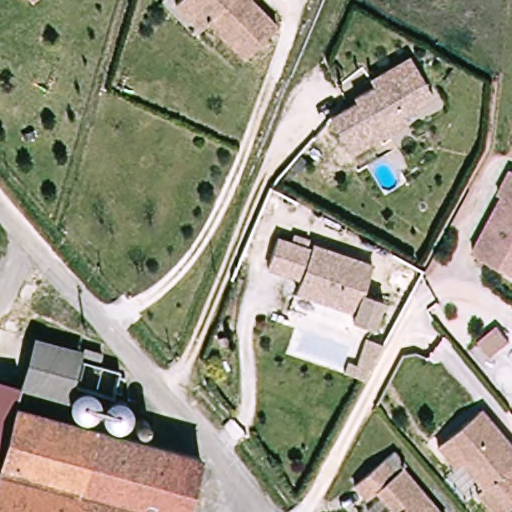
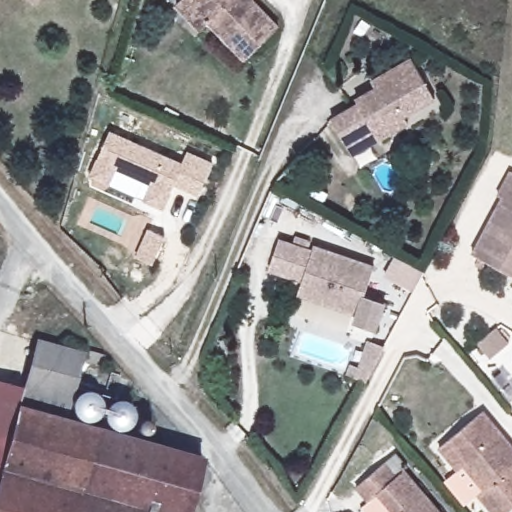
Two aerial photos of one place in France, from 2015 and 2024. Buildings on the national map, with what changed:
unchanged [(31,0),(36,0),(33,2),(31,0)]
unchanged [(244,60),(208,21),(200,29),(176,4),(180,0),(251,0),(277,28),(244,60)]
unchanged [(434,100),(403,117),(407,124),(351,156),(331,120),(358,105),(355,100),(374,89),(370,82),(379,77),(409,59),(434,100)]
new [(176,186),(164,210),(88,176),(110,130),(183,162),(188,150),(214,163),(198,195),(176,186)]
unchanged [(473,254),(503,197),(499,195),(511,171),(512,172),(512,275),(473,254)]
unchanged [(279,244),(292,249),(294,240),(314,247),(314,250),(374,270),(365,298),(384,305),(376,332),(356,326),(359,317),(298,297),(303,285),(269,273),(279,244)]
unchanged [(500,328),(512,343),(493,359),(481,344),(500,328)]
unchanged [(32,340),(80,354),(70,395),(69,399),(20,385),(32,340)]
unchanged [(106,355),(101,376),(88,373),(94,352),(106,355)]
unchanged [(0,459),(0,380),(20,385),(0,459)]
unchanged [(69,399),(64,418),(126,435),(201,455),(184,512),(0,512),(0,459),(20,385),(69,399)]
unchanged [(70,395),(132,410),(126,435),(64,418),(69,399),(70,395)]
unchanged [(507,512),(487,512),(474,496),(484,488),(466,463),(456,470),(439,447),(449,440),(484,413),(512,450),(512,509),(507,512)]
unchanged [(376,488),(366,496),(354,481),(383,458),(394,473),(403,466),(437,512),(393,512),(376,488)]

